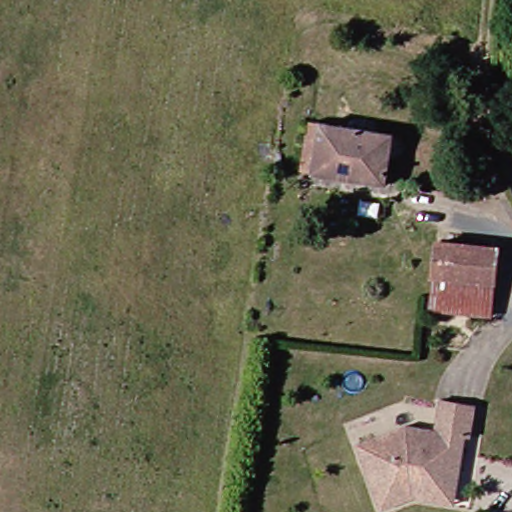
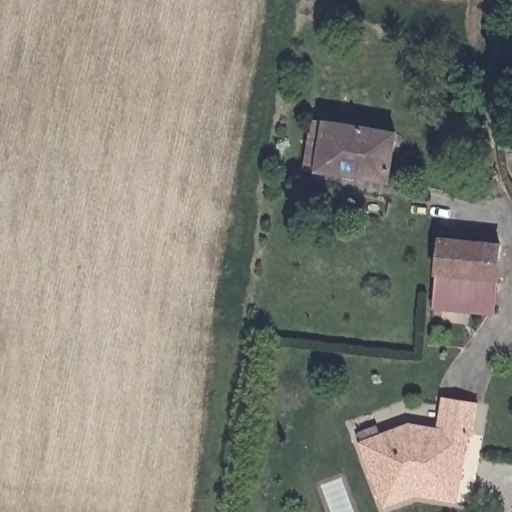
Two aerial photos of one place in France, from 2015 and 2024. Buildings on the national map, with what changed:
unchanged [(323,173),(308,171),(317,121),(330,122),(401,133),(393,184),(323,173)]
unchanged [(507,248),(502,313),(442,310),(446,244),(507,248)]
unchanged [(411,424),(442,430),(450,398),(483,405),(477,439),(486,442),(473,506),(417,498),(388,506),(364,445),(411,424)]

